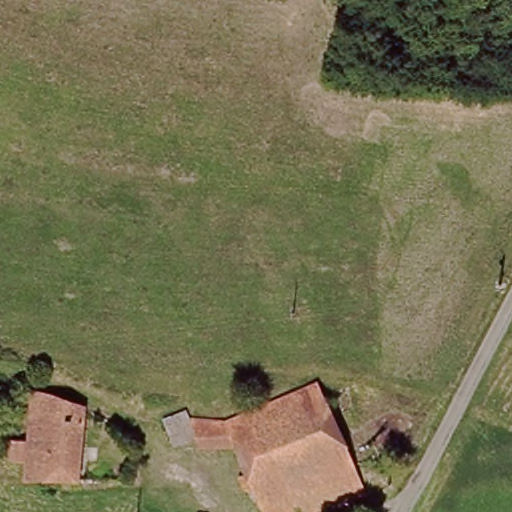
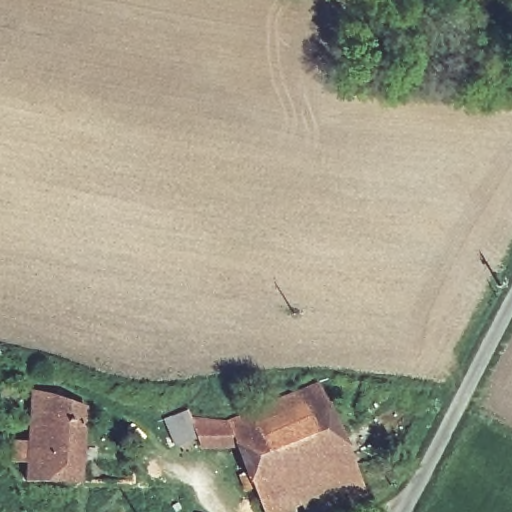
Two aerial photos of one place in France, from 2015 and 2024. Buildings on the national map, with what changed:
unchanged [(326,382),(330,391),(345,427),(367,492),(316,512),(306,512),(302,501),(279,512),(268,512),(241,446),(202,446),(196,419),(233,420),(326,382)]
unchanged [(60,397),(89,411),(86,485),(30,482),(37,392),(60,397)]

